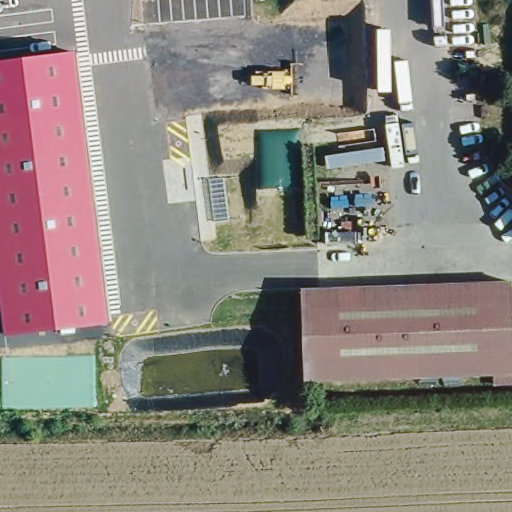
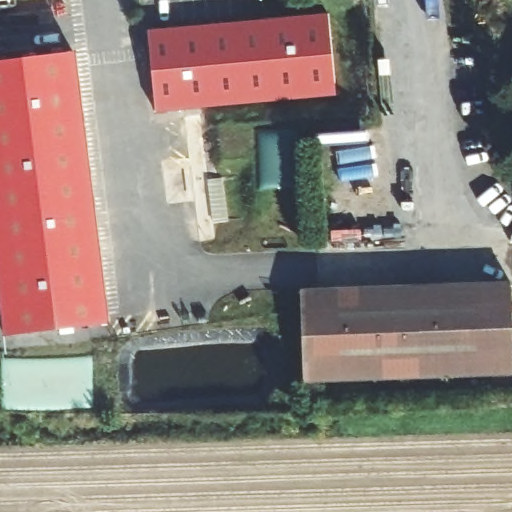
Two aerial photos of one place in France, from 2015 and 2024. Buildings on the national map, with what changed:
new [(333,100),(157,111),(152,30),(327,15),(333,100)]
unchanged [(0,293),(0,61),(77,51),(110,323),(5,336),(0,293)]
unchanged [(490,383),(490,373),(305,379),(302,290),(505,282),(507,350),(512,350),(512,370),(508,370),(508,372),(509,382),(490,383)]

